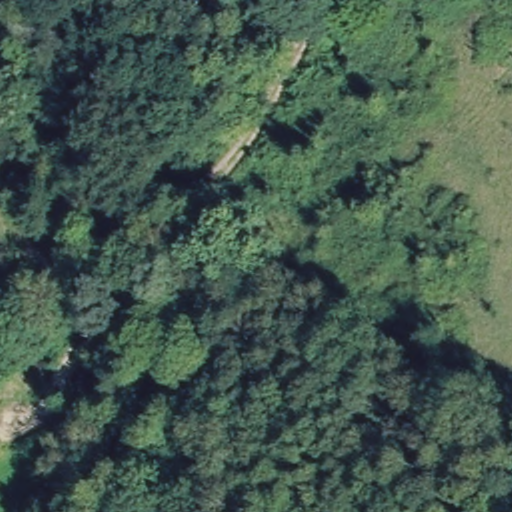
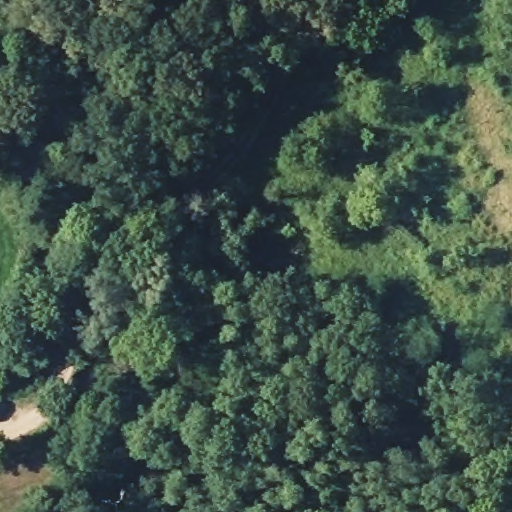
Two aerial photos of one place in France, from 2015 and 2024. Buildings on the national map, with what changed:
unchanged [(213,265),(191,252),(200,233),(222,245),(213,265)]

